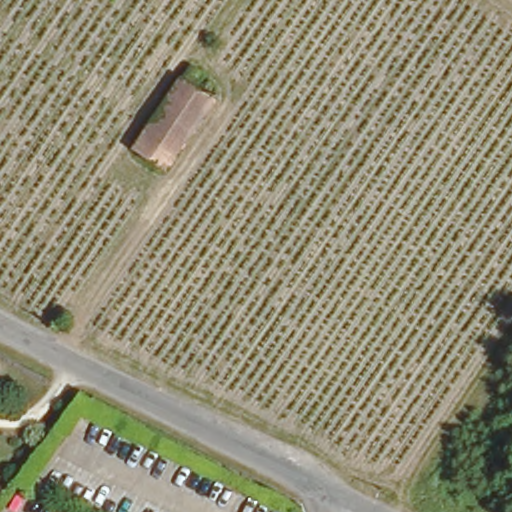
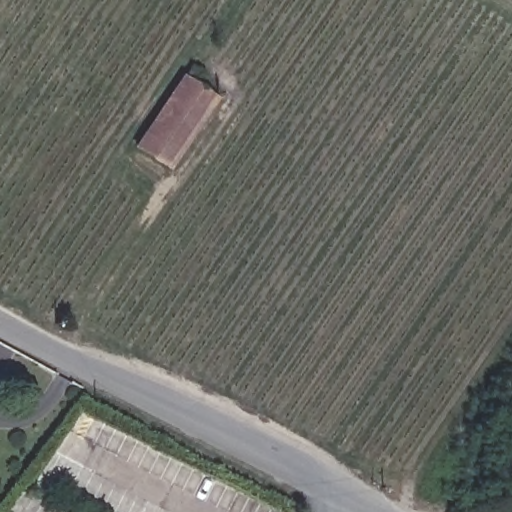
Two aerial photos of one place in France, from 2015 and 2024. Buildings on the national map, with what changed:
unchanged [(169,174),(137,151),(192,72),(205,81),(199,91),(217,104),(169,174)]

